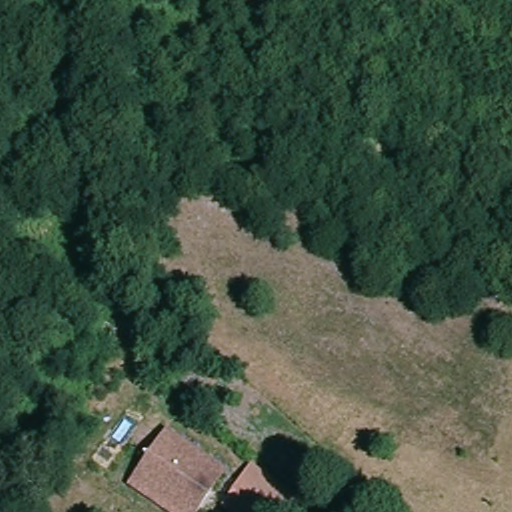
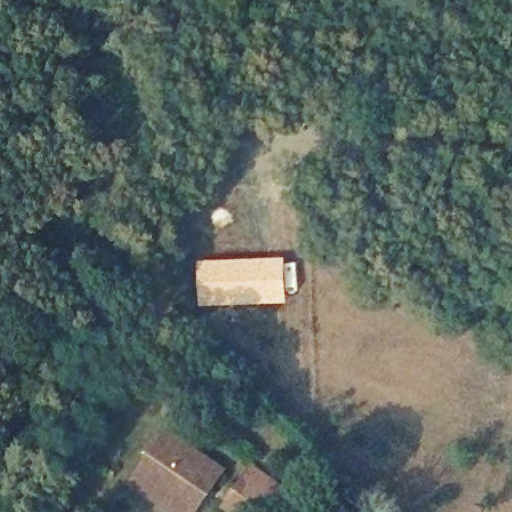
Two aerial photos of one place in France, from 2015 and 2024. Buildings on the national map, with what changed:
new [(285,258),(287,306),(200,308),(199,262),(285,258)]
unchanged [(132,481),(165,433),(222,472),(195,512),(180,512),(154,495),(132,481)]
unchanged [(273,512),(230,512),(215,502),(230,476),(276,508),(273,512)]

